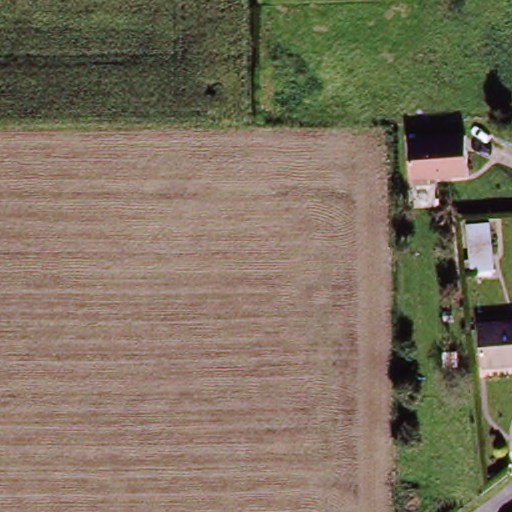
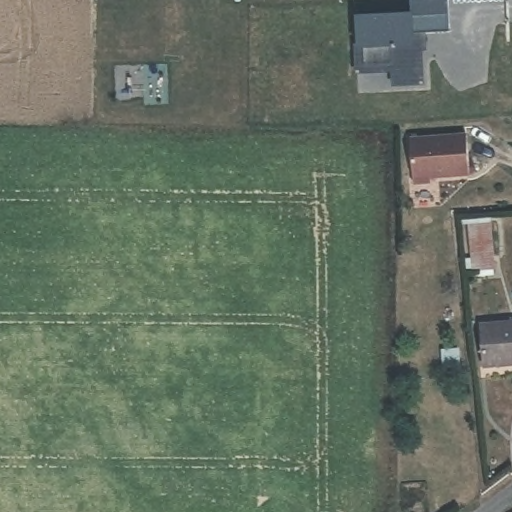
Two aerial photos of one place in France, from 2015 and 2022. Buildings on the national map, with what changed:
new [(357,13),(410,11),(410,0),(448,0),(450,29),(423,30),(424,45),(415,45),(416,53),(420,53),(421,80),(392,81),(392,66),(356,68),(355,42),(357,41),(357,13)]
demolished [(512,0),(512,68),(494,70),(488,0),(512,0)]
demolished [(292,69),(292,105),(275,106),(275,69),(292,69)]
unchanged [(470,177),(430,180),(431,185),(413,187),(410,138),(467,134),(470,177)]
unchanged [(492,269),(473,271),(468,225),(487,223),(492,269)]
unchanged [(512,326),(512,368),(489,372),(483,330),(512,326)]

